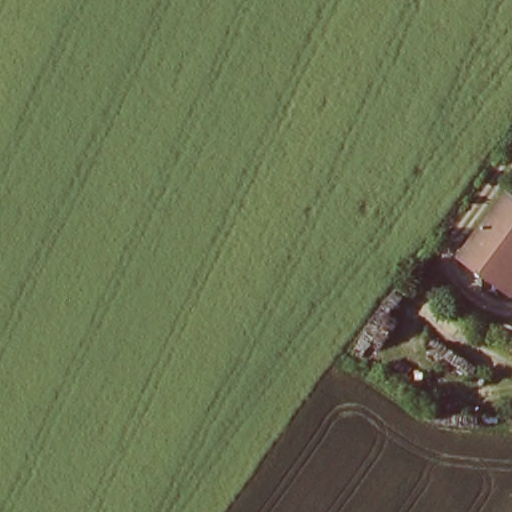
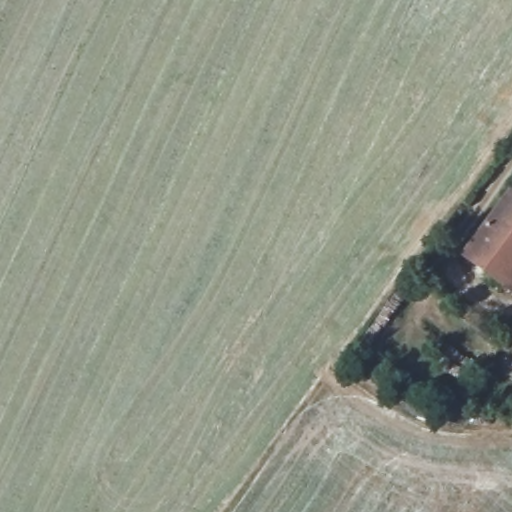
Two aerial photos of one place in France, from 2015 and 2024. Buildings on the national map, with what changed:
unchanged [(475,253),(512,203),(512,280),(475,253)]

